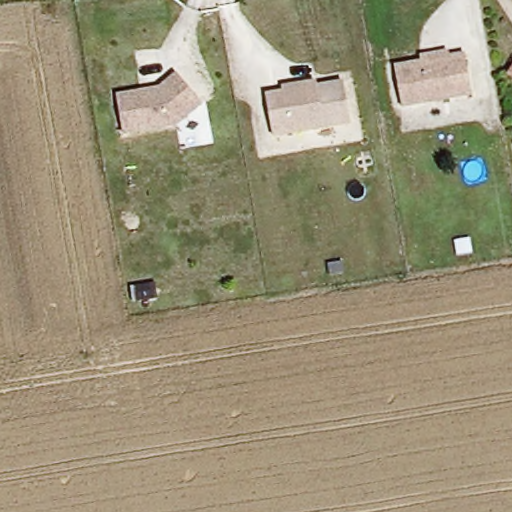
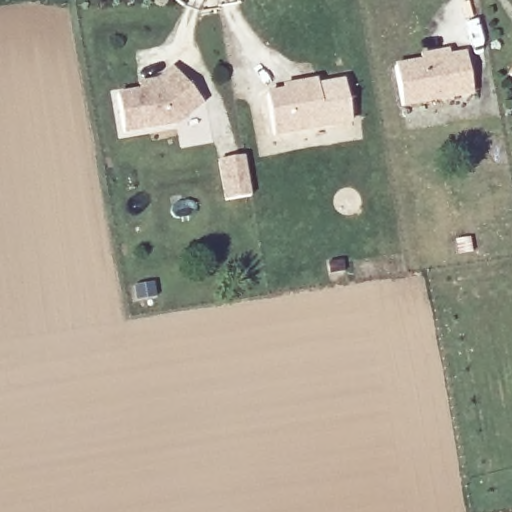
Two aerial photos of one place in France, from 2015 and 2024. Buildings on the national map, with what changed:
unchanged [(398,66),(424,61),(423,56),(451,51),(452,56),(467,53),(475,91),(406,105),(398,66)]
unchanged [(512,63),(512,75),(506,71),(512,63)]
unchanged [(204,103),(178,124),(124,135),(118,91),(160,84),(175,71),(204,103)]
unchanged [(285,89),(284,83),(316,77),(317,84),(344,80),(351,124),(274,137),(267,92),(285,89)]
new [(240,157),(250,196),(225,201),(216,163),(240,157)]

